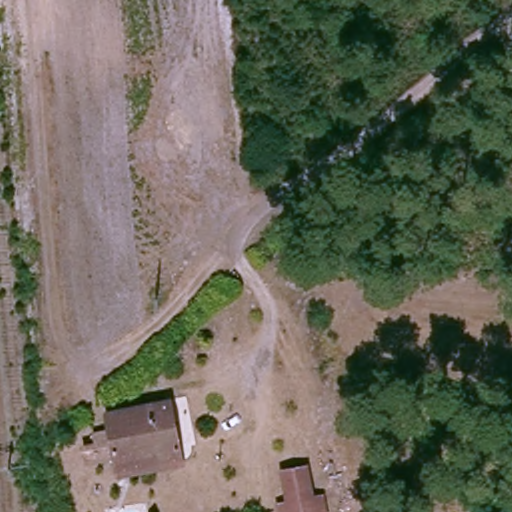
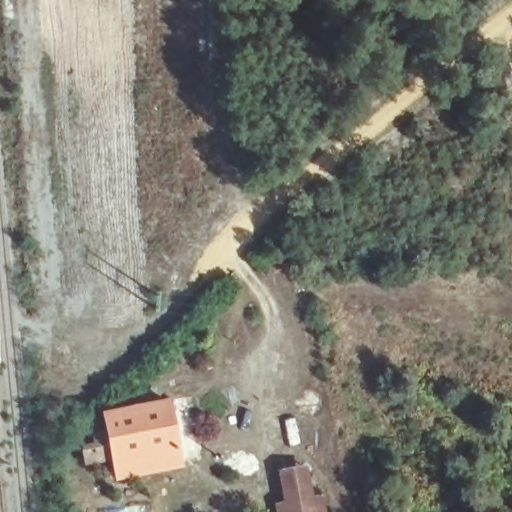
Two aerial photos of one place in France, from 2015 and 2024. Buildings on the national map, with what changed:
unchanged [(108,460),(107,412),(175,400),(178,452),(180,475),(149,480),(112,482),(108,460)]
unchanged [(282,499),(278,470),(309,465),(316,494),(323,495),(328,512),(273,512),(272,505),(282,499)]

